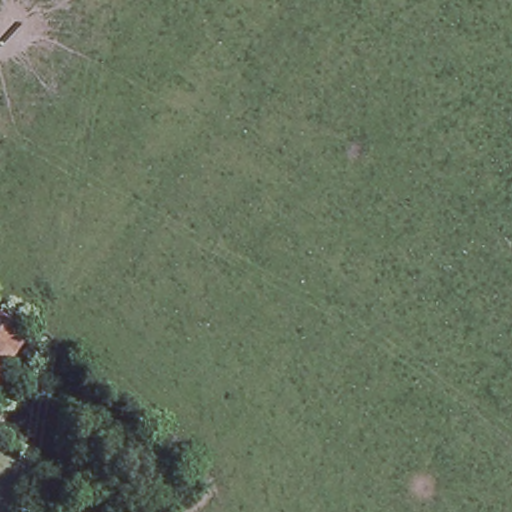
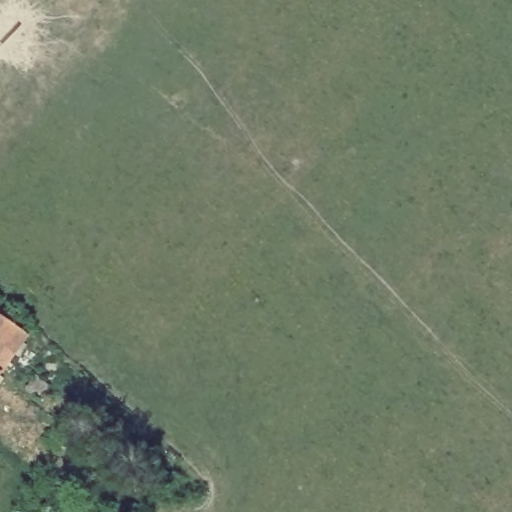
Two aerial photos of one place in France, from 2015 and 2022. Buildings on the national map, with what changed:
unchanged [(27,332),(0,373),(0,313),(27,332)]

